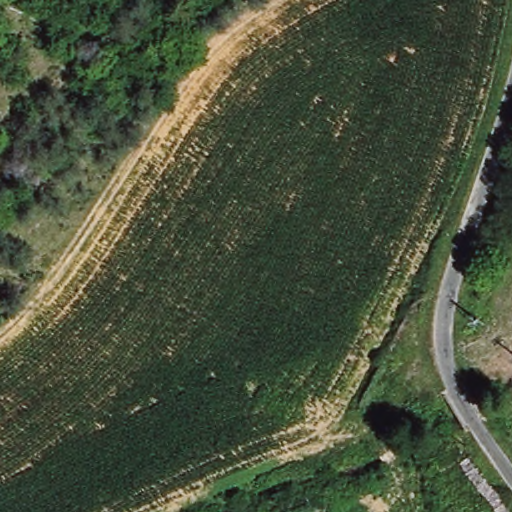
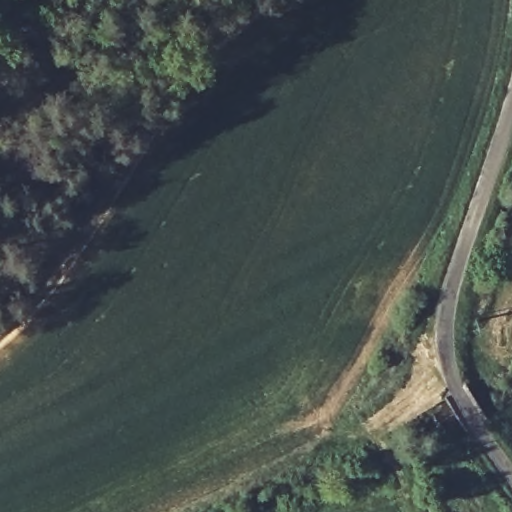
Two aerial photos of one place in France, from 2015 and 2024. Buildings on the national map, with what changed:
[]

